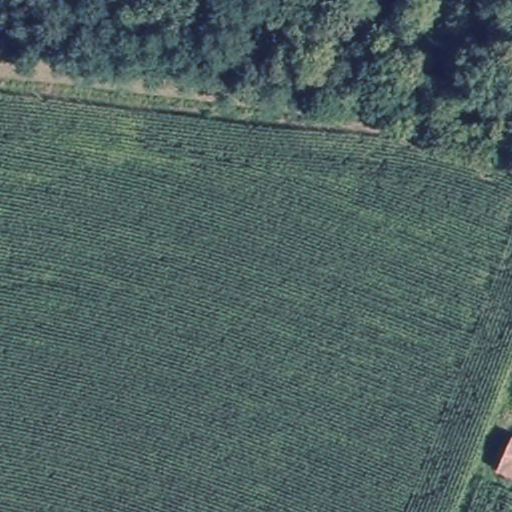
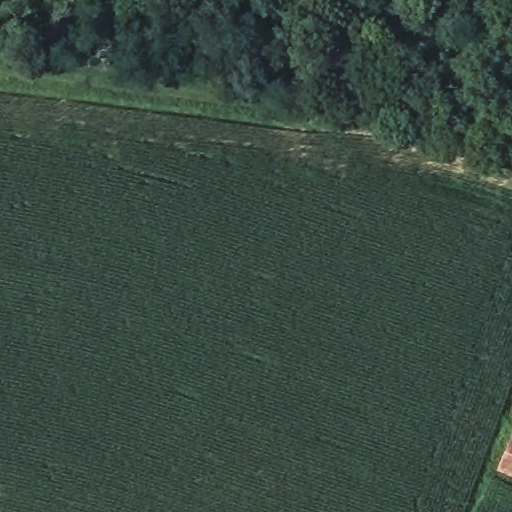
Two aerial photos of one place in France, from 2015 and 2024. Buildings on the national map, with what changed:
unchanged [(501,470),(512,445),(512,475),(501,470)]

